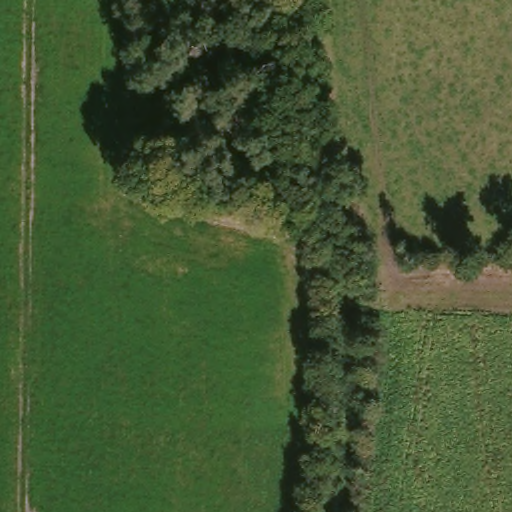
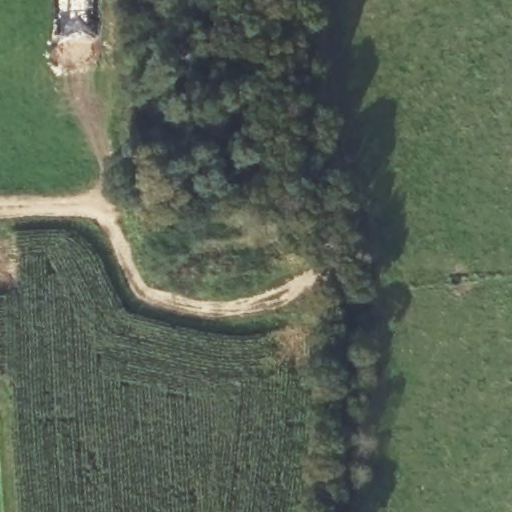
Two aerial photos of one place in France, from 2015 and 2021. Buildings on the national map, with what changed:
[]

